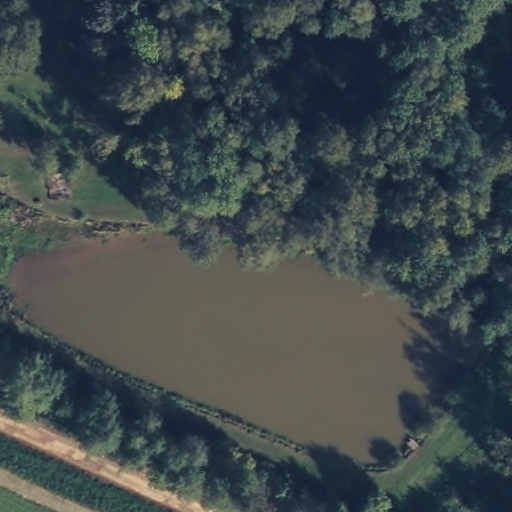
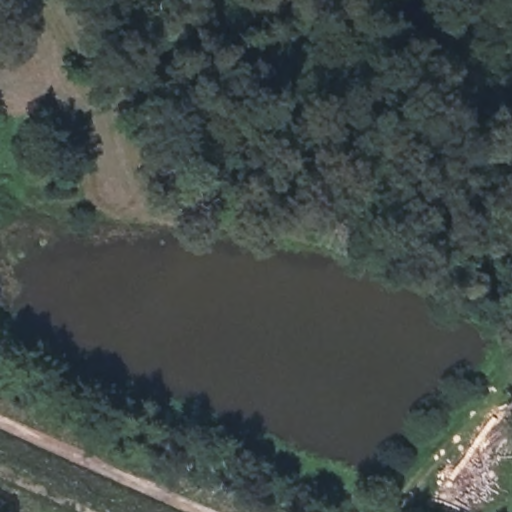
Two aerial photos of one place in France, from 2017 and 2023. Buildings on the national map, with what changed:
unchanged [(68,154),(70,191),(45,191),(42,157),(68,154)]

